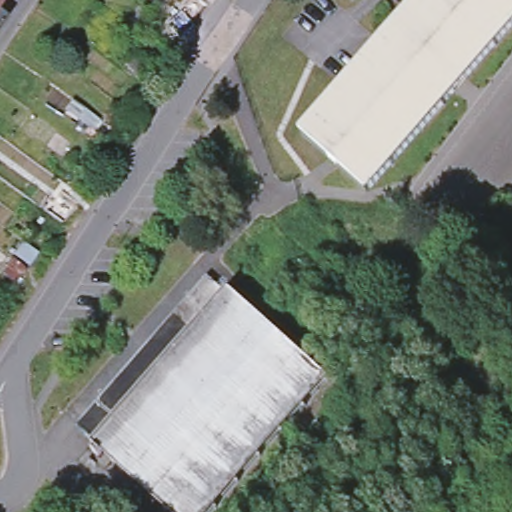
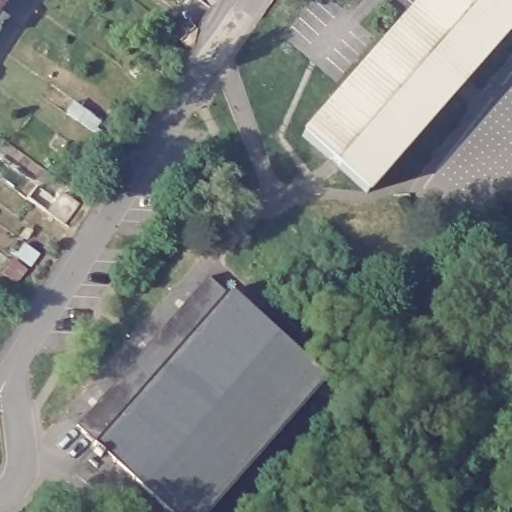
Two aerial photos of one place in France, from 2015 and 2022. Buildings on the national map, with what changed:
unchanged [(0,9),(0,0),(6,0),(0,9)]
unchanged [(366,189),(301,132),(418,0),(512,0),(512,23),(366,189)]
unchanged [(3,30),(0,35),(0,15),(10,21),(3,30)]
unchanged [(97,438),(79,421),(210,275),(229,292),(97,438)]
unchanged [(230,291),(328,379),(207,512),(173,512),(95,440),(97,438),(229,292),(230,291)]

